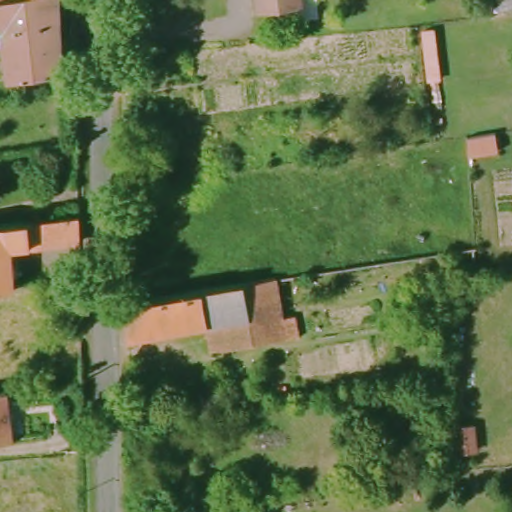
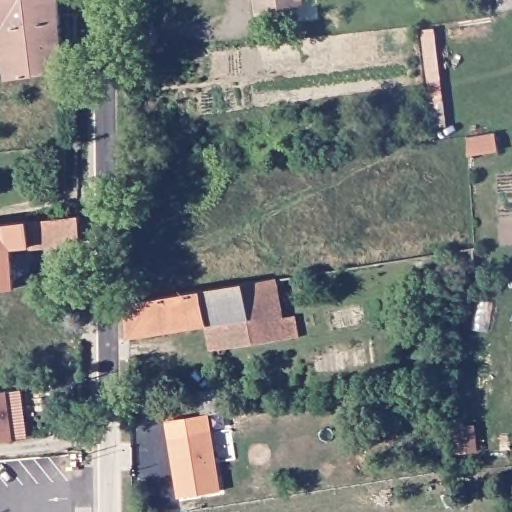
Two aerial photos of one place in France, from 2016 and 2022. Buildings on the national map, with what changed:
unchanged [(57,0),(59,72),(2,81),(0,61),(0,0),(57,0)]
unchanged [(250,0),(294,0),(296,11),(252,16),(250,0)]
unchanged [(491,137),(493,154),(465,160),(464,142),(491,137)]
unchanged [(78,246),(10,249),(12,286),(0,288),(0,224),(79,215),(78,246)]
unchanged [(125,305),(274,282),(279,316),(292,315),(296,340),(211,352),(207,327),(125,338),(125,305)]
unchanged [(5,388),(10,438),(0,439),(0,389),(5,388)]
unchanged [(200,416),(197,393),(217,390),(221,413),(200,416)]
unchanged [(455,455),(454,429),(470,429),(474,454),(455,455)]
new [(168,438),(212,431),(221,490),(177,498),(168,438)]

